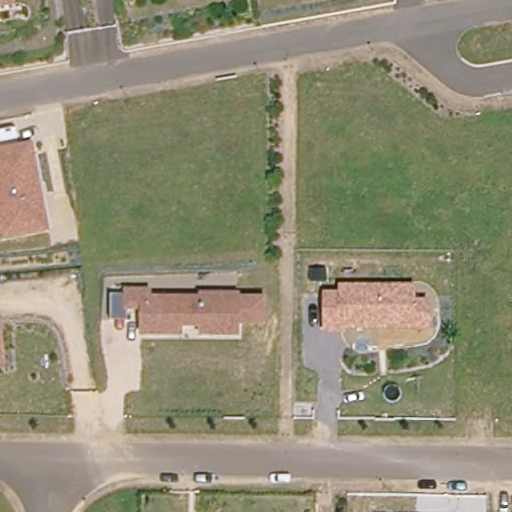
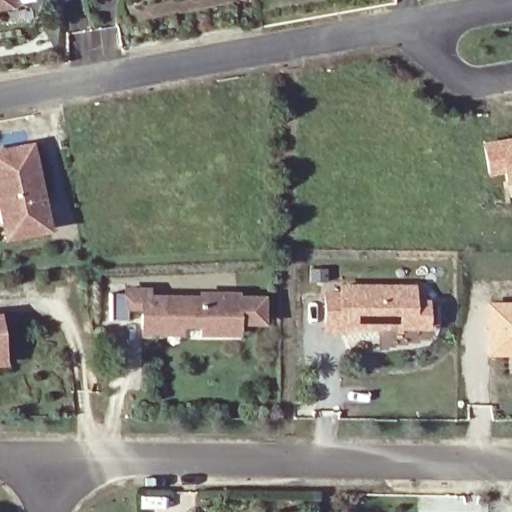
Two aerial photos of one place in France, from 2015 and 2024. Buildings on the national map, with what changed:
unchanged [(11,3),(0,5),(0,0),(10,0),(11,3)]
new [(512,136),(512,185),(504,186),(501,172),(486,175),(480,141),(512,136)]
unchanged [(0,230),(0,149),(31,142),(50,232),(9,240),(0,230)]
unchanged [(322,291),(338,292),(338,284),(416,285),(416,299),(428,298),(428,329),(348,329),(348,334),(322,335),(322,291)]
unchanged [(202,335),(202,326),(162,326),(162,333),(143,332),(142,314),(149,314),(149,305),(126,305),(126,291),(150,291),(150,298),(201,298),(201,294),(240,295),(239,301),(262,300),(262,318),(237,319),(237,335),(202,335)]
new [(485,300),(512,301),(512,357),(485,356),(485,300)]
unchanged [(5,367),(0,368),(0,315),(5,367)]

